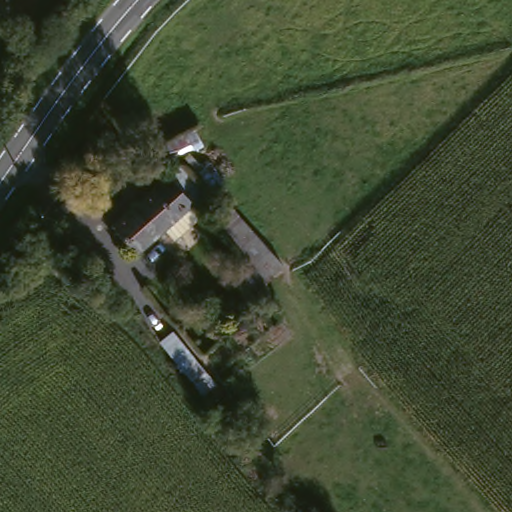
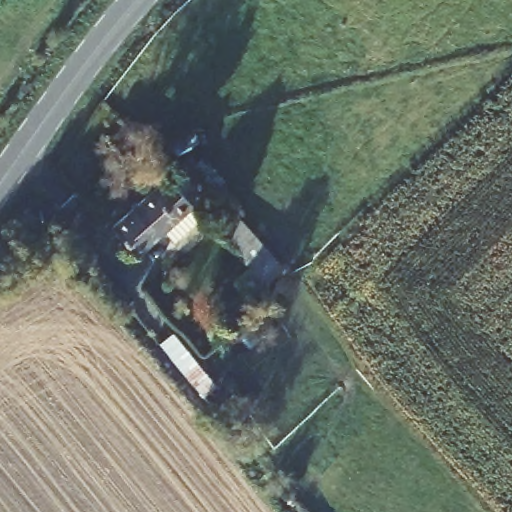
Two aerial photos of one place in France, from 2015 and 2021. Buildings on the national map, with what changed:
unchanged [(177,237),(168,227),(142,249),(118,220),(181,169),(189,163),(215,198),(211,202),(206,196),(197,203),(206,214),(177,237)]
unchanged [(247,220),(281,260),(268,270),(248,287),(234,271),(250,258),(230,234),(233,231),(247,220)]
unchanged [(161,340),(189,373),(206,393),(198,401),(181,381),(153,347),(161,340)]

